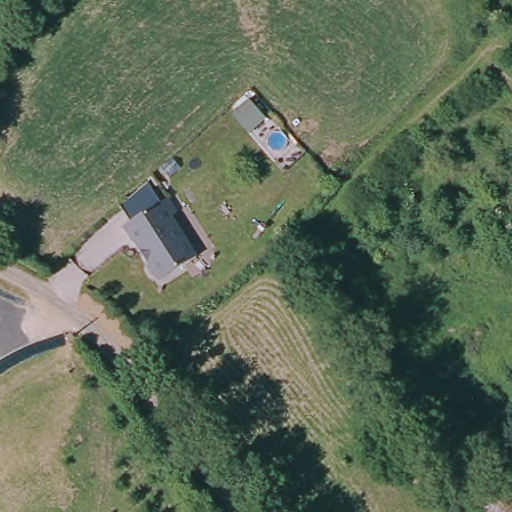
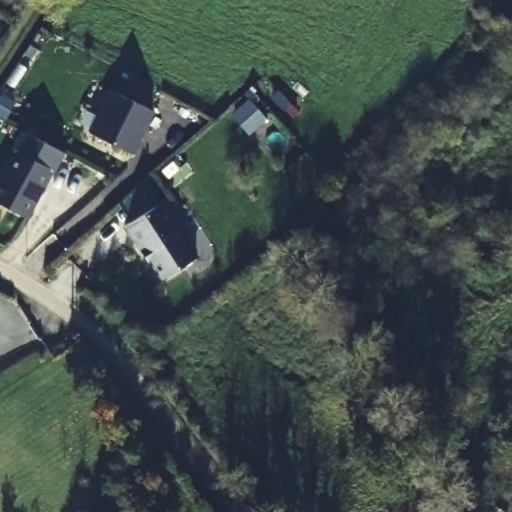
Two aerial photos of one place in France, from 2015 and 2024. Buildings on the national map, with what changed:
new [(92,132),(112,87),(156,110),(135,154),(92,132)]
new [(0,177),(25,132),(64,152),(30,217),(0,202),(0,177)]
unchanged [(157,276),(154,277),(147,268),(147,260),(132,238),(122,226),(162,197),(172,211),(167,214),(177,229),(193,257),(159,280),(157,276)]
unchanged [(485,501),(512,477),(512,512),(495,512),(485,501)]

